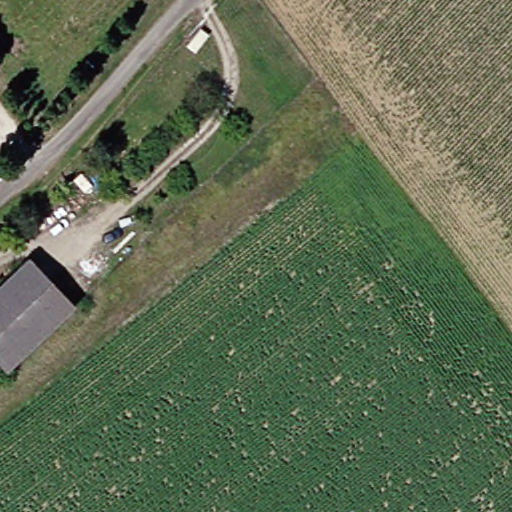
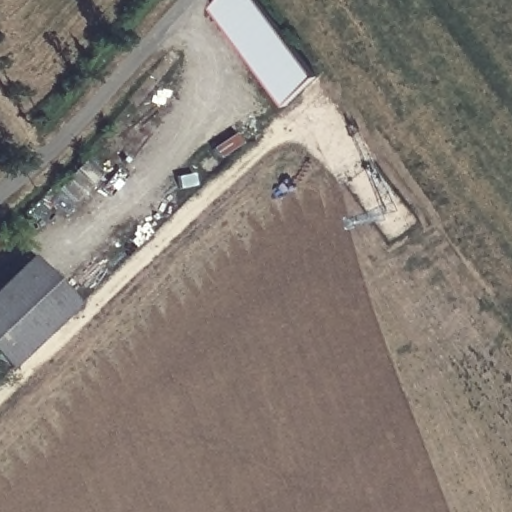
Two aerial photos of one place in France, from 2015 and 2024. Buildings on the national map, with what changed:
new [(211,0),(253,0),(311,77),(281,106),(205,5),(211,0)]
unchanged [(14,255),(64,302),(0,364),(0,270),(14,255)]

